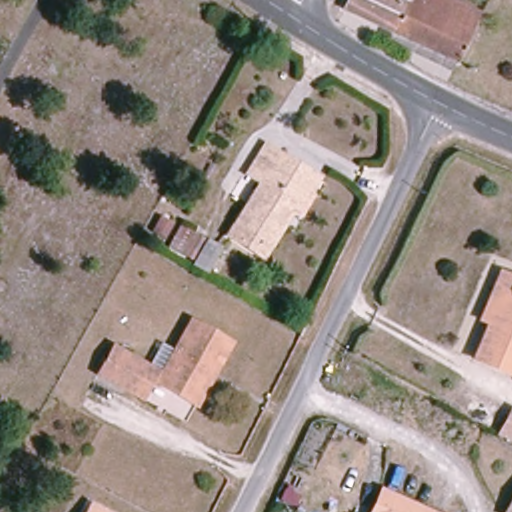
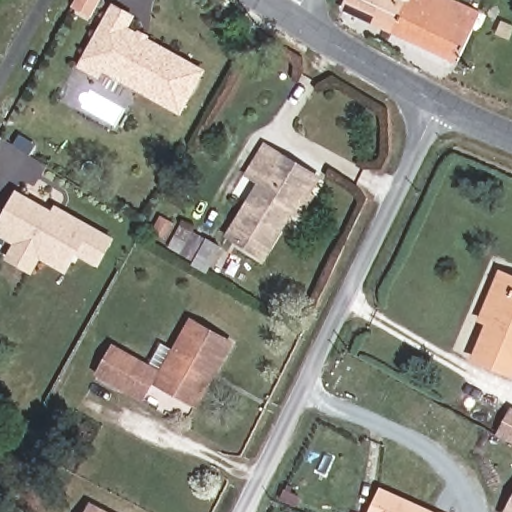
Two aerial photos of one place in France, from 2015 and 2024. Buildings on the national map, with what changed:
unchanged [(341,8),(345,0),(446,0),(475,14),(452,62),(341,8)]
new [(135,17),(130,28),(136,31),(138,29),(150,36),(149,38),(206,70),(181,116),(103,72),(99,79),(76,67),(112,3),(135,17)]
unchanged [(230,237),(262,181),(250,173),(267,146),(279,153),(313,173),(307,184),(265,257),(230,237)]
new [(77,255),(66,275),(41,260),(32,275),(6,260),(12,244),(0,237),(0,222),(18,190),(51,209),(54,204),(115,238),(99,267),(77,255)]
unchanged [(165,238),(152,231),(160,215),(173,221),(165,238)]
unchanged [(204,273),(190,266),(192,262),(169,247),(181,224),(220,246),(204,273)]
unchanged [(492,321),(481,316),(503,267),(512,271),(512,371),(475,355),(492,321)]
unchanged [(183,398),(154,381),(140,402),(94,374),(110,346),(144,364),(156,344),(171,351),(189,322),(229,344),(212,374),(195,406),(183,398)]
unchanged [(512,443),(502,438),(512,419),(512,443)]
unchanged [(421,512),(369,512),(378,492),(421,512)]
unchanged [(107,512),(86,512),(90,503),(107,512)]
unchanged [(512,512),(508,512),(512,504),(512,512)]

